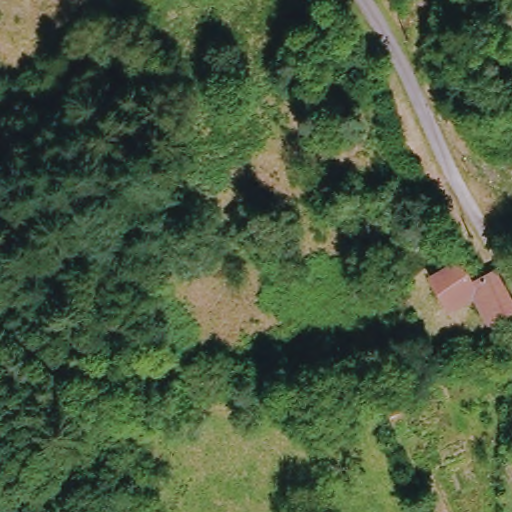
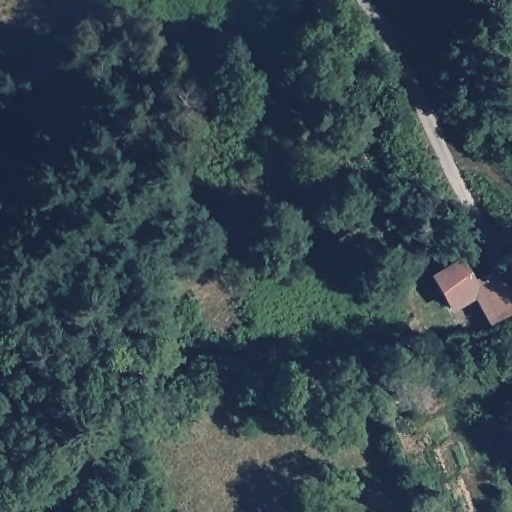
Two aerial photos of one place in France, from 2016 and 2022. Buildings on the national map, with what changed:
unchanged [(471,298),(449,309),(431,277),(457,262),(469,285),(493,271),(509,297),(512,306),(512,312),(487,325),(471,298)]

